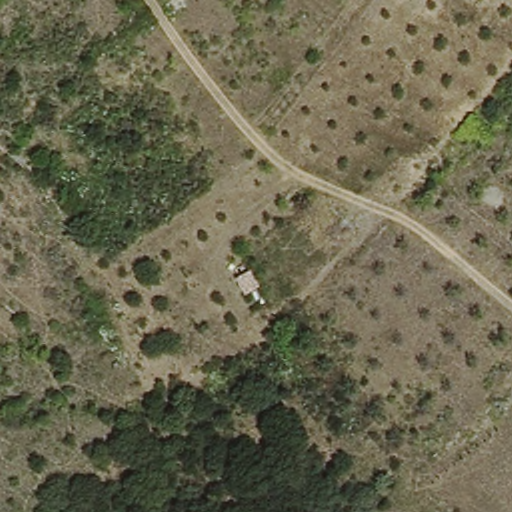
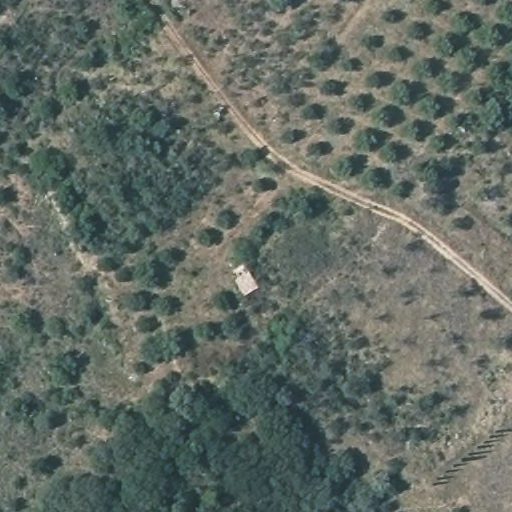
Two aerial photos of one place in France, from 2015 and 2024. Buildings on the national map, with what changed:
unchanged [(258,285),(242,293),(234,276),(252,270),(258,285)]

